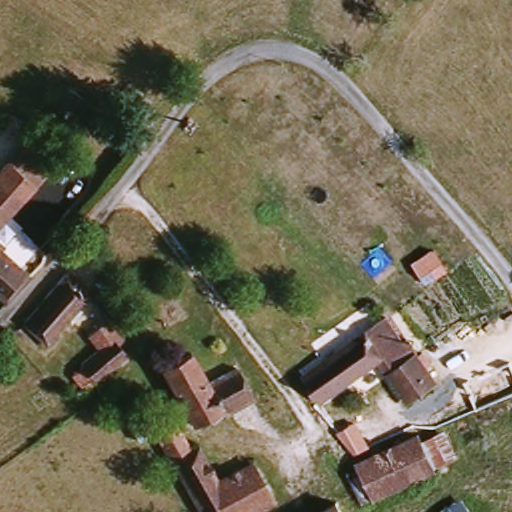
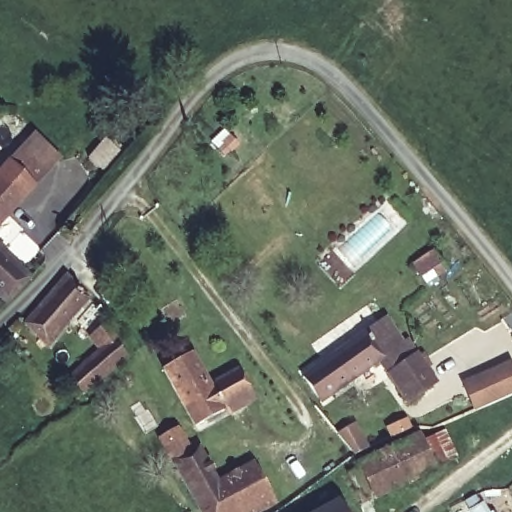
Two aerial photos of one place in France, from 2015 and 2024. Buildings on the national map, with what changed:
unchanged [(7,167),(9,164),(23,146),(50,167),(35,185),(32,189),(0,229),(0,175),(7,167)]
unchanged [(0,300),(0,250),(32,278),(5,305),(0,300)]
unchanged [(47,344),(25,324),(65,279),(87,300),(47,344)]
unchanged [(355,383),(320,407),(300,381),(352,345),(381,327),(387,323),(407,352),(413,348),(442,391),(415,408),(383,365),(355,383)]
unchanged [(75,404),(60,380),(98,359),(87,338),(112,324),(123,344),(135,363),(75,404)]
new [(512,362),(512,394),(475,410),(461,382),(512,361),(512,362)]
unchanged [(237,372),(254,396),(199,429),(163,380),(191,362),(209,388),(237,372)]
unchanged [(437,469),(440,478),(362,506),(347,477),(358,471),(355,461),(418,434),(422,441),(445,432),(457,460),(437,469)]
unchanged [(263,512),(197,512),(157,443),(169,435),(174,443),(185,458),(192,453),(213,488),(242,472),(265,511),(263,512)]
unchanged [(343,512),(323,512),(339,505),(343,512)]

